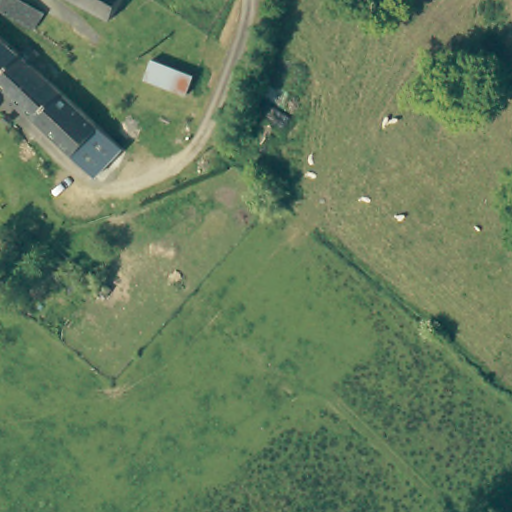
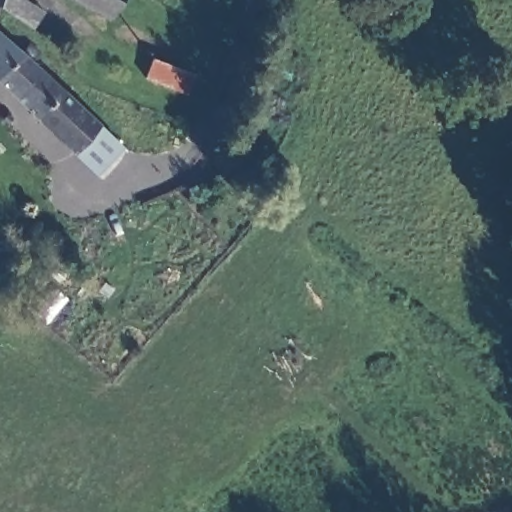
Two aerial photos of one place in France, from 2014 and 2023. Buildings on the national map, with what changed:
unchanged [(0,7),(0,0),(10,0),(7,11),(0,7)]
unchanged [(111,19),(75,0),(121,0),(111,19)]
unchanged [(21,53),(29,44),(40,53),(32,63),(99,126),(73,154),(0,83),(0,35),(21,53)]
unchanged [(145,78),(152,59),(194,75),(187,94),(145,78)]
unchanged [(121,146),(96,175),(73,154),(99,126),(121,146)]

